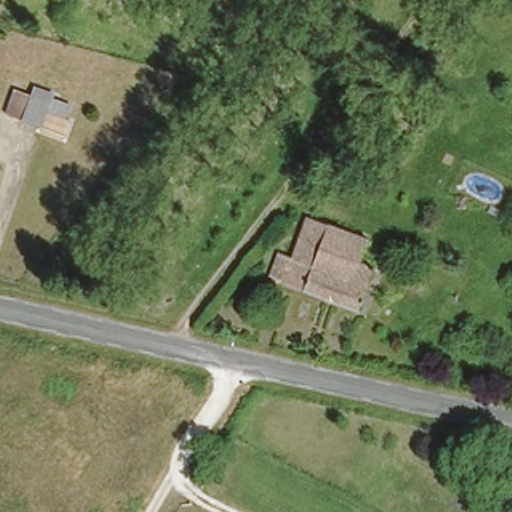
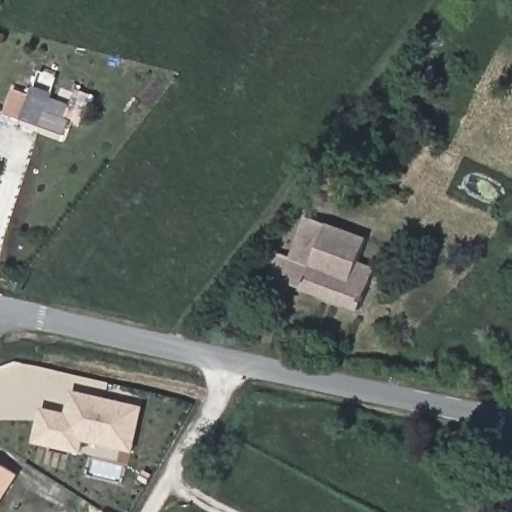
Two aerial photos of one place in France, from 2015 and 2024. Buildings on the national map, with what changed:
unchanged [(1,116),(8,88),(24,93),(26,89),(50,95),(40,126),(1,116)]
unchanged [(326,196),(337,169),(363,179),(351,206),(326,196)]
unchanged [(355,310),(263,276),(287,213),(363,238),(356,262),(372,268),(355,310)]
new [(70,390),(143,407),(132,453),(82,442),(82,454),(32,443),(40,408),(65,414),(70,390)]
new [(0,501),(0,466),(16,476),(0,501)]

